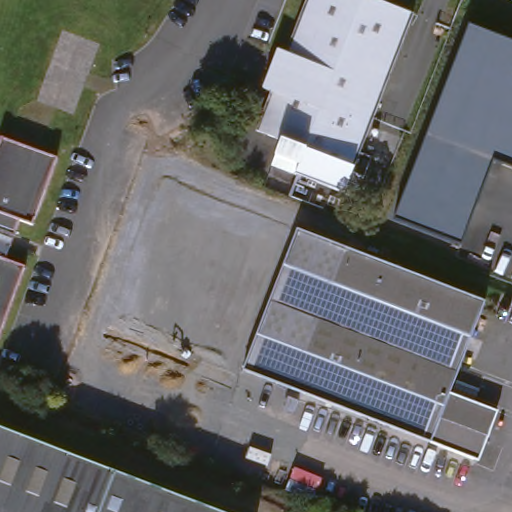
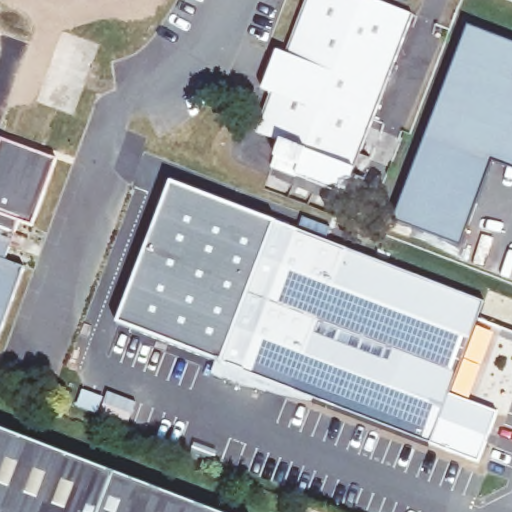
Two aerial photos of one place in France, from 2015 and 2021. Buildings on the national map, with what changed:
unchanged [(346,198),(269,171),(282,141),(253,132),(272,87),(278,51),(290,56),(309,0),(380,0),(415,14),(355,168),(346,198)]
unchanged [(459,242),(395,218),(469,28),(512,44),(512,167),(492,159),(459,242)]
unchanged [(55,156),(31,223),(20,220),(6,259),(26,266),(0,340),(0,136),(55,156)]
new [(243,373),(310,397),(307,403),(235,384),(210,374),(214,359),(118,321),(171,182),(272,221),(298,231),(243,373)]
unchanged [(497,410),(478,457),(243,373),(298,231),(486,302),(452,392),(497,410)]
unchanged [(118,472),(218,512),(0,512),(0,426),(118,472)]

